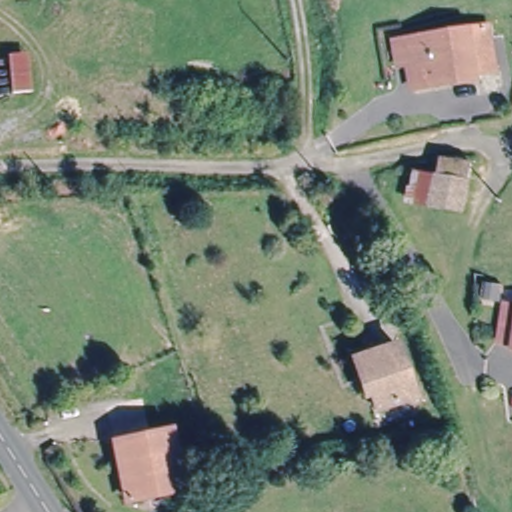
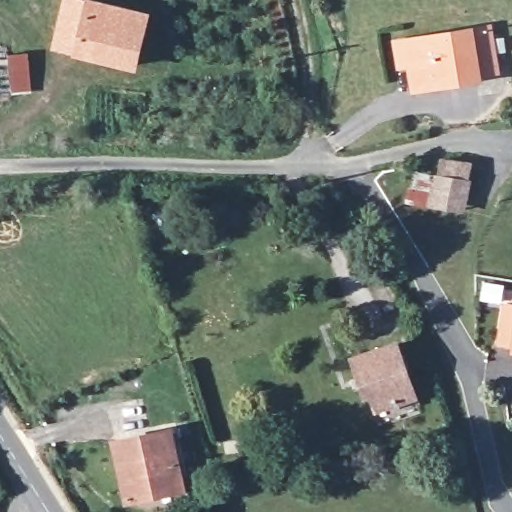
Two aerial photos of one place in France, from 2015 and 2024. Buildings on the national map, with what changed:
new [(138,70),(75,53),(52,47),(63,0),(87,0),(103,0),(151,12),(138,70)]
unchanged [(412,87),(408,62),(397,63),(393,41),(428,35),(486,25),(494,68),(476,71),(477,77),(457,80),(441,82),(412,87)]
unchanged [(9,97),(5,56),(26,54),(30,95),(9,97)]
unchanged [(467,176),(461,208),(424,202),(429,170),(432,170),(435,156),(466,161),(465,175),(467,176)]
unchanged [(509,298),(512,299),(512,336),(503,335),(509,298)]
unchanged [(354,364),(348,346),(393,332),(410,384),(372,396),(367,379),(359,382),(354,364)]
unchanged [(184,487),(128,500),(116,442),(171,430),(184,487)]

